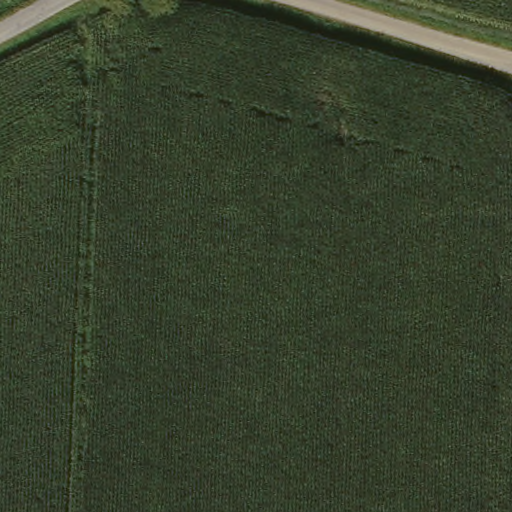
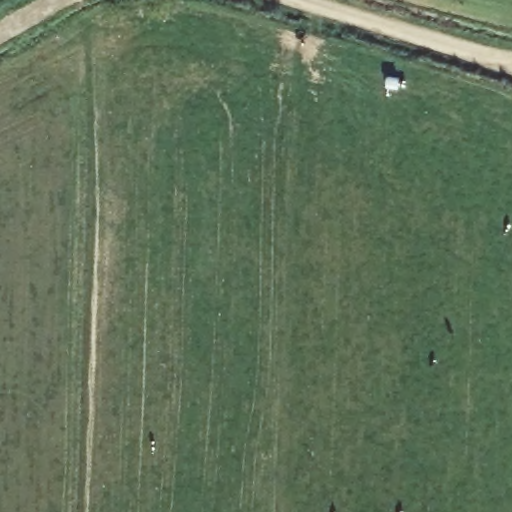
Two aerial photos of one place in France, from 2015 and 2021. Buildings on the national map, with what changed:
[]

